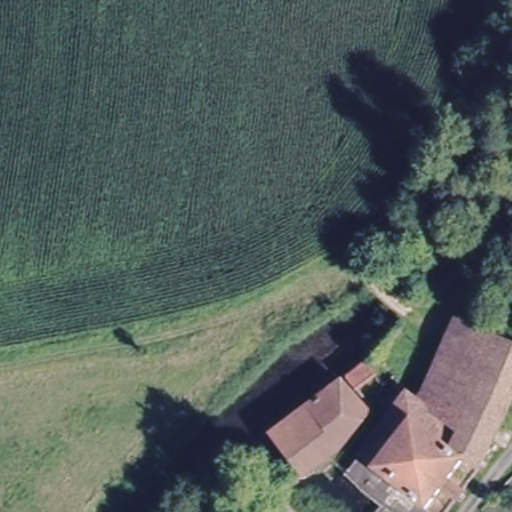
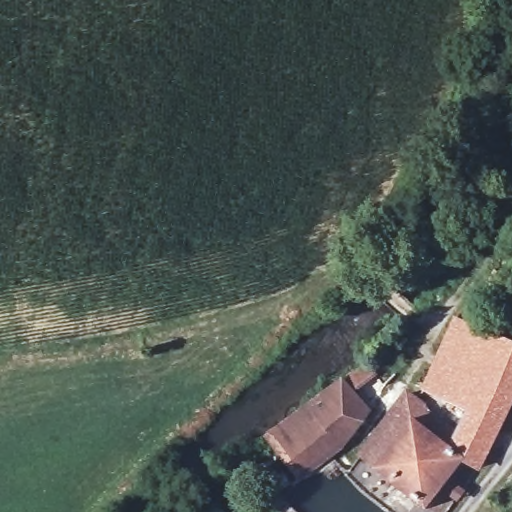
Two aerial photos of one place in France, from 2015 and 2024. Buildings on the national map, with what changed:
unchanged [(512,338),(512,405),(482,470),(461,464),(429,511),(375,473),(414,417),(400,408),(411,393),(422,401),(433,385),(459,316),(512,338)]
unchanged [(269,429),(335,380),(367,415),(342,437),(346,441),(310,475),(269,429)]

